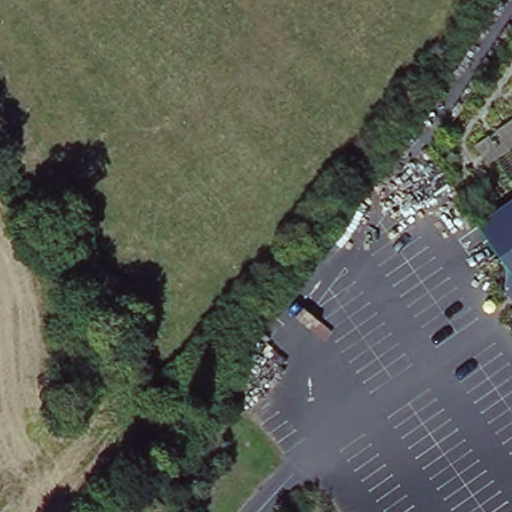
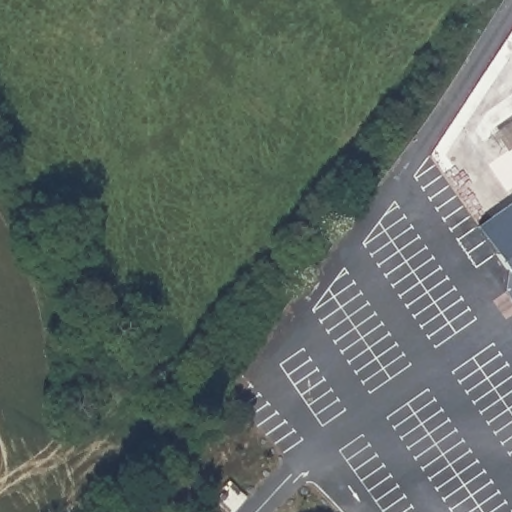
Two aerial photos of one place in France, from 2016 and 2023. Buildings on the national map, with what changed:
unchanged [(485,165),(475,147),(512,121),(512,147),(485,165)]
unchanged [(487,217),(512,199),(512,252),(487,217)]

